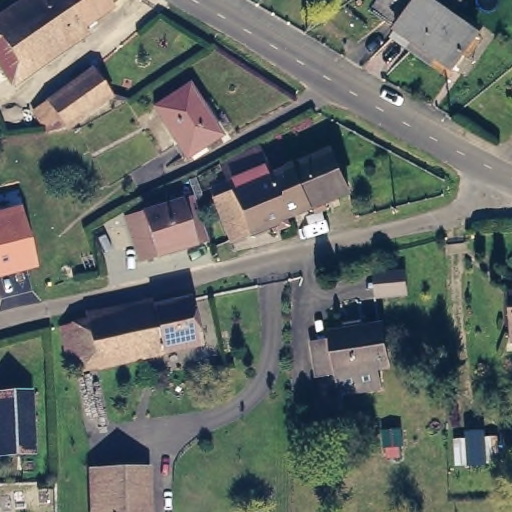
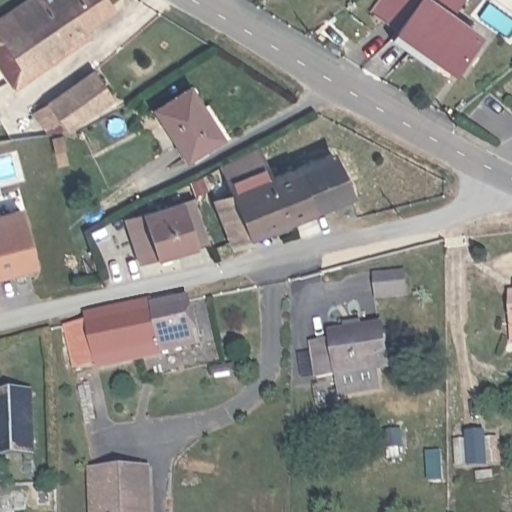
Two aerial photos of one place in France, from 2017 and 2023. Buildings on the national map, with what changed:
unchanged [(37,0),(100,0),(110,15),(91,26),(95,31),(86,37),(83,32),(27,68),(0,28),(0,25),(37,0)]
unchanged [(451,10),(480,34),(452,69),(439,59),(430,67),(390,34),(398,24),(375,6),(380,0),(459,0),(451,10)]
unchanged [(30,72),(10,86),(0,71),(0,28),(27,68),(30,72)]
unchanged [(35,113),(93,74),(112,97),(70,125),(60,132),(50,133),(35,113)]
unchanged [(220,134),(186,154),(153,105),(188,85),(220,134)]
unchanged [(255,143),(257,149),(262,163),(267,175),(330,150),(346,192),(322,201),(325,208),(315,211),(314,205),(284,217),(286,223),(272,228),(270,223),(227,239),(212,196),(230,188),(221,160),(233,154),(255,143)]
unchanged [(195,242),(127,263),(114,220),(182,199),(195,242)]
unchanged [(30,257),(0,265),(0,216),(18,211),(30,257)]
unchanged [(512,294),(512,327),(511,294),(512,294)]
unchanged [(183,302),(192,344),(90,367),(80,324),(183,302)]
unchanged [(387,321),(392,360),(382,362),(385,382),(347,387),(344,368),(325,370),(320,336),(339,333),(339,328),(387,321)]
unchanged [(90,367),(67,371),(57,329),(80,324),(90,367)]
unchanged [(29,391),(31,453),(0,454),(0,392),(29,391)]
unchanged [(401,429),(402,446),(385,447),(384,429),(401,429)]
unchanged [(151,460),(152,512),(112,512),(110,461),(151,460)]

